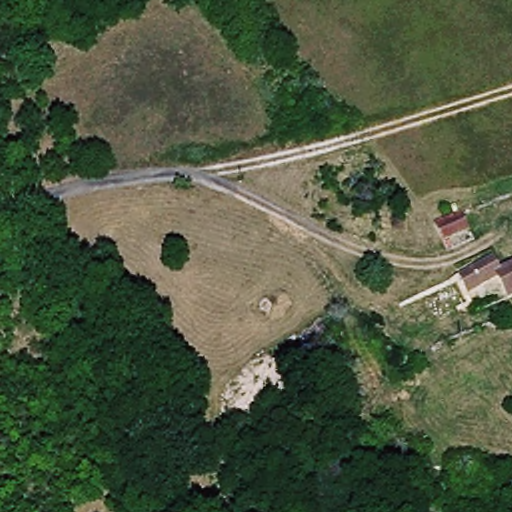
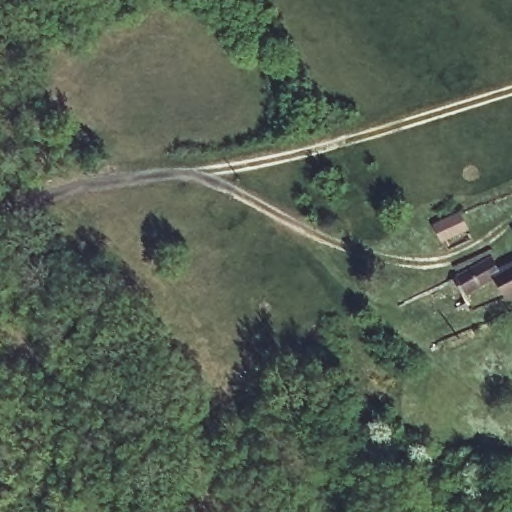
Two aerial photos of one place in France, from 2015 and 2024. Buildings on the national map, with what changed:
unchanged [(482,232),(454,242),(449,226),(476,216),(482,232)]
unchanged [(491,277),(465,289),(470,301),(411,324),(400,297),(457,270),(489,255),(495,267),(512,258),(512,296),(502,301),(491,277)]

